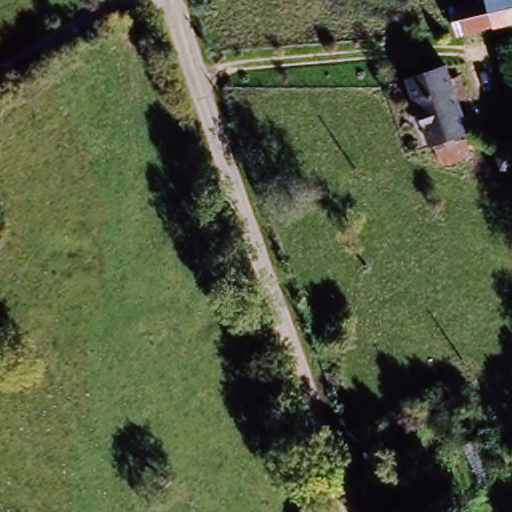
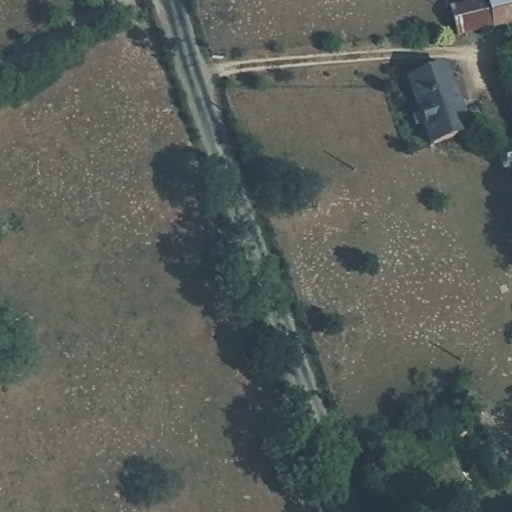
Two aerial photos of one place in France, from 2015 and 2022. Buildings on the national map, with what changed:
unchanged [(452,37),(443,10),(479,0),(512,0),(512,22),(452,37)]
unchanged [(427,151),(403,80),(445,66),(452,83),(462,80),(469,99),(457,104),(468,137),(427,151)]
unchanged [(501,142),(512,138),(512,165),(510,166),(501,142)]
unchanged [(507,512),(472,512),(512,487),(512,509),(507,512)]

